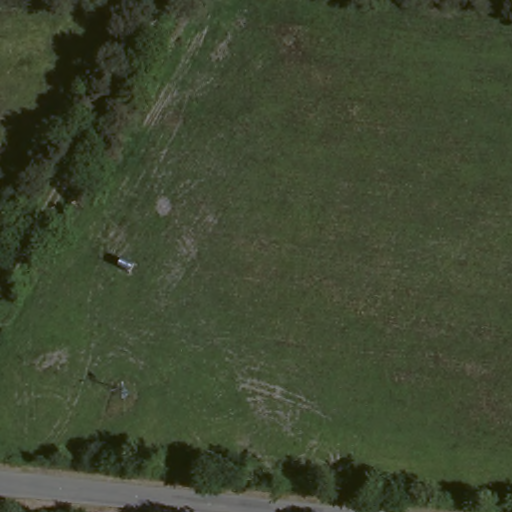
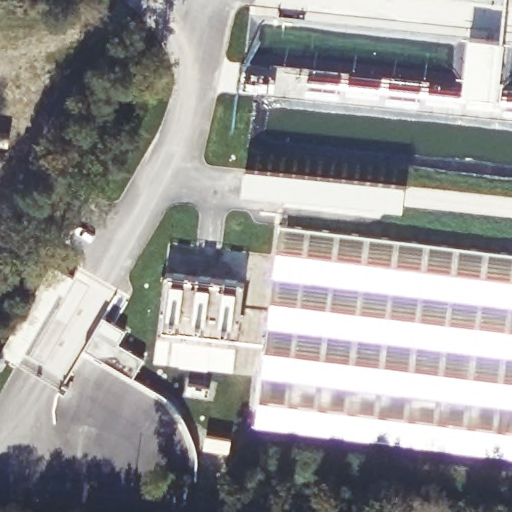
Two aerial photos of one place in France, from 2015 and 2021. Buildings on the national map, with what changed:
new [(504,40),(497,96),(466,94),(471,36),(504,40)]
new [(512,251),(512,454),(257,423),(281,224),(512,251)]
new [(156,359),(159,333),(166,273),(244,280),(235,342),(233,368),(156,359)]

